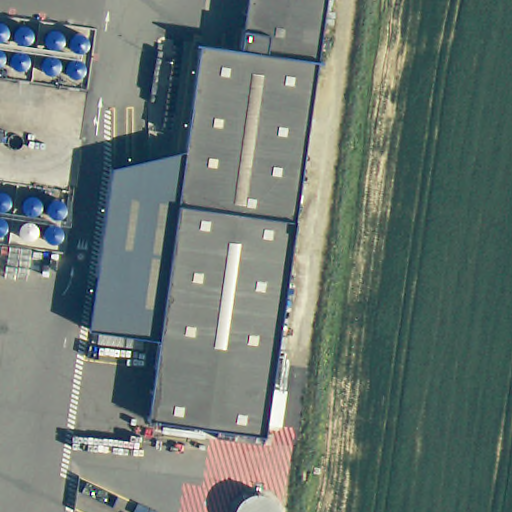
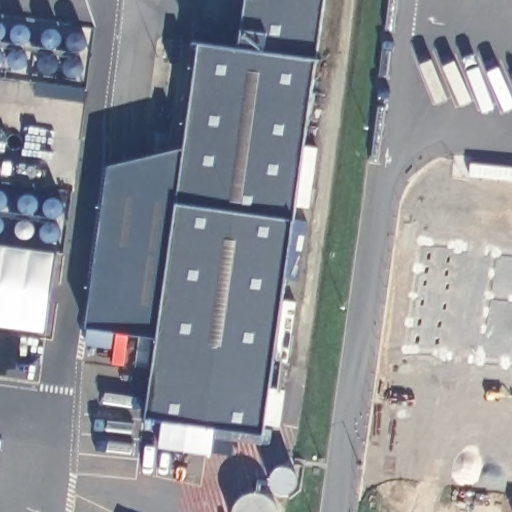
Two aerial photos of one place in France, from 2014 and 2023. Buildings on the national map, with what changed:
unchanged [(200,38),(239,43),(246,0),(327,0),(290,254),(173,237),(186,147),(200,38)]
unchanged [(12,30),(11,32),(10,33),(9,35),(7,36),(6,36),(4,37),(2,37),(0,37),(0,18),(0,17),(2,17),(4,17),(6,18),(7,18),(9,19),(10,21),(11,22),(12,24),(12,25),(12,27),(12,29),(12,30)]
unchanged [(37,32),(36,34),(36,35),(35,37),(33,38),(32,39),(30,40),(29,40),(27,40),(25,40),(24,40),(22,39),(21,38),(19,37),(18,35),(18,34),(17,32),(17,30),(17,29),(18,27),(18,25),(19,24),(21,23),(22,22),(23,21),(25,20),(27,20),(29,20),(30,21),(32,22),(33,23),(35,24),(36,25),(36,27),(37,29),(37,30),(37,32)]
unchanged [(67,36),(67,38),(66,39),(65,41),(64,42),(62,43),(61,44),(59,44),(57,44),(55,44),(54,44),(52,43),(51,42),(50,41),(49,39),(48,38),(47,36),(47,34),(47,33),(48,31),(49,29),(50,28),(51,27),(52,26),(54,25),(55,25),(57,24),(59,25),(61,25),(62,26),(64,27),(65,28),(66,29),(67,31),(67,33),(67,34),(67,36)]
unchanged [(92,39),(91,41),(91,43),(90,44),(88,45),(87,46),(85,47),(84,48),(82,48),(80,48),(79,47),(77,46),(76,45),(74,44),(73,43),(73,41),(72,39),(72,38),(72,36),(73,34),(73,33),(74,31),(76,30),(77,29),(79,28),(80,28),(82,28),(84,28),(85,28),(87,29),(88,30),(90,31),(91,33),(91,34),(92,36),(92,38),(92,39)]
unchanged [(8,60),(7,62),(6,63),(5,64),(3,65),(2,66),(0,67),(0,47),(2,47),(3,48),(5,49),(6,50),(7,52),(8,53),(8,55),(8,57),(8,59),(8,60)]
unchanged [(33,62),(32,63),(32,65),(31,66),(29,68),(28,69),(26,69),(25,70),(23,70),(21,70),(20,69),(18,69),(17,68),(15,66),(14,65),(14,63),(13,62),(13,60),(13,58),(14,57),(14,55),(15,54),(17,52),(18,51),(20,51),(21,50),(23,50),(25,50),(26,51),(28,51),(29,52),(31,54),(32,55),(32,57),(33,58),(33,60),(33,62)]
unchanged [(63,66),(63,68),(62,69),(61,71),(60,72),(58,73),(57,73),(55,74),(53,74),(51,74),(50,73),(48,73),(47,72),(46,71),(45,69),(44,68),(43,66),(43,64),(43,62),(44,61),(45,59),(46,58),(47,56),(48,55),(50,55),(51,54),(53,54),(55,54),(57,55),(58,55),(60,56),(61,58),(62,59),(63,61),(63,62),(63,64),(63,66)]
unchanged [(88,69),(87,71),(87,72),(86,74),(84,75),(83,76),(81,77),(80,77),(78,77),(76,77),(75,77),(73,76),(72,75),(70,74),(69,72),(69,71),(68,69),(68,67),(68,66),(69,64),(69,62),(70,61),(72,60),(73,59),(75,58),(76,58),(78,57),(80,58),(81,58),(83,59),(84,60),(86,61),(87,62),(87,64),(88,66),(88,67),(88,69)]
unchanged [(0,134),(11,135),(10,147),(0,146),(0,134)]
unchanged [(173,237),(161,334),(138,331),(91,325),(112,164),(163,152),(186,147),(173,237)]
unchanged [(14,198),(14,200),(13,201),(11,203),(10,204),(8,204),(7,205),(5,205),(3,205),(2,204),(0,204),(0,186),(2,186),(3,185),(5,185),(7,185),(8,186),(10,186),(11,187),(13,189),(14,190),(14,192),(15,193),(15,195),(15,197),(14,198)]
unchanged [(45,201),(45,203),(44,204),(43,206),(42,207),(40,208),(39,209),(37,209),(35,209),(33,209),(32,209),(30,208),(29,207),(28,205),(27,204),(26,203),(25,201),(25,199),(25,197),(26,196),(27,194),(28,193),(29,191),(30,190),(32,190),(33,189),(35,189),(37,189),(39,190),(40,190),(42,191),(43,193),(44,194),(45,196),(45,197),(45,199),(45,201)]
unchanged [(70,204),(69,206),(69,207),(68,209),(66,210),(65,211),(63,212),(62,212),(60,212),(58,212),(57,212),(55,211),(54,210),(52,209),(51,207),(51,206),(50,204),(50,202),(50,201),(51,199),(51,197),(52,196),(53,195),(55,194),(57,193),(58,193),(60,192),(62,193),(63,193),(65,194),(66,195),(68,196),(69,197),(69,199),(70,201),(70,202),(70,204)]
unchanged [(10,228),(10,230),(9,231),(7,232),(6,233),(4,234),(3,235),(1,235),(0,235),(0,215),(1,215),(3,215),(4,215),(6,216),(7,217),(9,218),(10,220),(10,221),(11,223),(11,225),(11,226),(10,228)]
unchanged [(41,231),(41,232),(40,234),(39,235),(38,236),(36,237),(35,238),(33,239),(31,239),(30,239),(28,238),(26,238),(25,236),(24,235),(23,234),(22,232),(21,231),(21,229),(21,227),(22,225),(23,224),(24,222),(25,221),(26,220),(28,219),(29,219),(31,219),(33,219),(35,219),(36,220),(38,221),(39,222),(40,224),(41,225),(41,227),(41,229),(41,231)]
unchanged [(66,234),(65,236),(65,237),(64,239),(62,240),(61,241),(59,242),(58,242),(56,242),(54,242),(53,242),(51,241),(50,240),(48,239),(47,237),(47,236),(46,234),(46,232),(46,230),(47,229),(47,227),(48,226),(50,224),(51,223),(53,223),(54,222),(56,222),(58,222),(59,223),(61,223),(62,224),(64,226),(65,227),(65,229),(66,230),(66,232),(66,234)]
unchanged [(157,362),(161,334),(173,237),(290,254),(272,380),(157,362)]
new [(0,326),(0,245),(55,252),(46,332),(0,326)]
unchanged [(265,434),(150,414),(157,362),(272,380),(265,434)]

